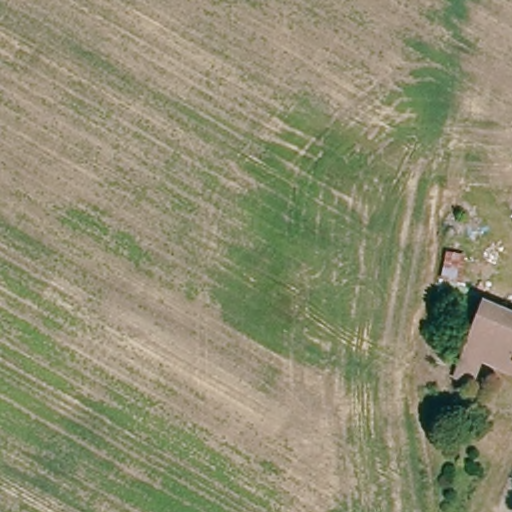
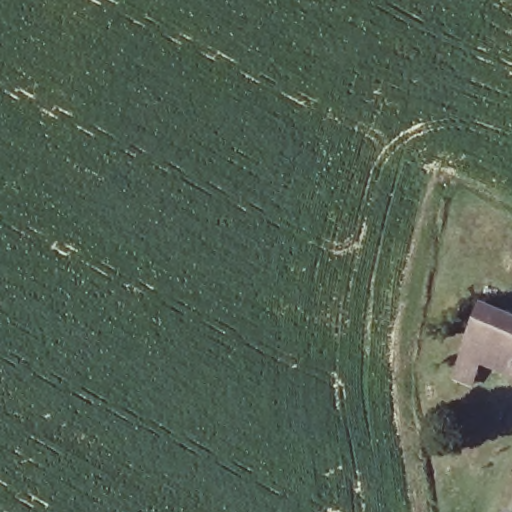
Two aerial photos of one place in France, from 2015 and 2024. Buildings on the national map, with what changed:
unchanged [(476,379),(454,370),(485,296),(512,307),(512,372),(488,361),(476,379)]

